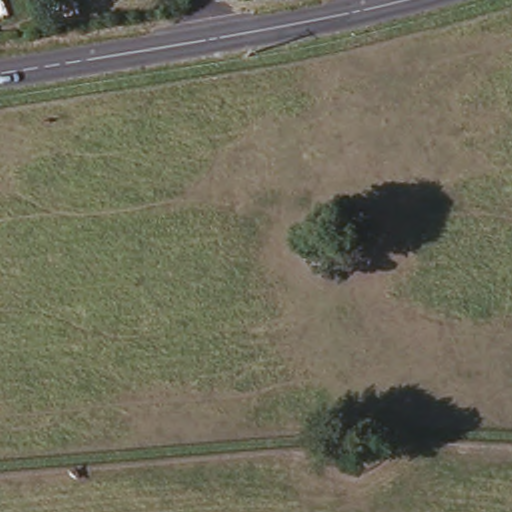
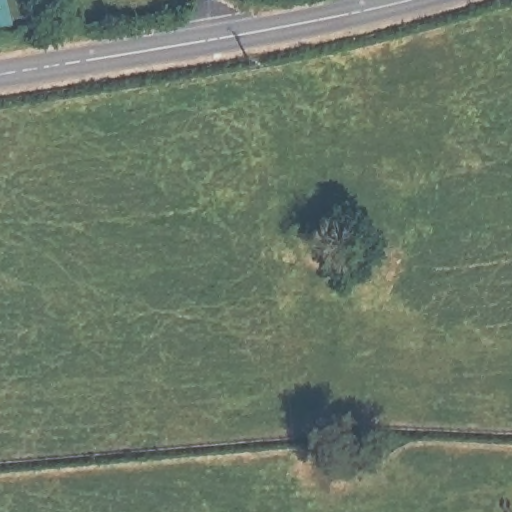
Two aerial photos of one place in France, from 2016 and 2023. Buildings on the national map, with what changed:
[]

